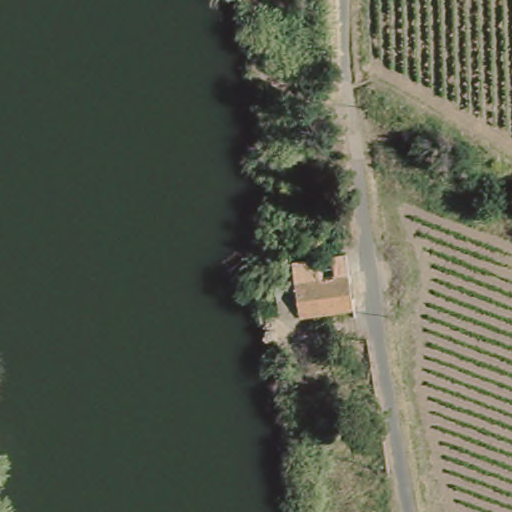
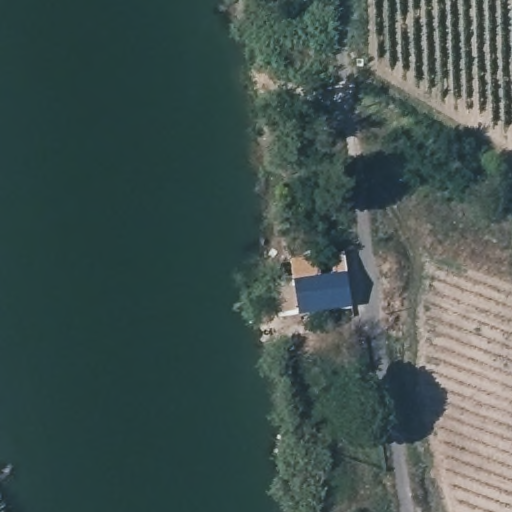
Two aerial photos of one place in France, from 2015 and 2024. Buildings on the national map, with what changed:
unchanged [(350,244),(353,263),(288,272),(284,247),(290,246),(291,252),(297,251),(296,246),(315,243),(323,242),(324,248),(350,244)]
unchanged [(353,263),(358,297),(284,307),(279,273),(288,272),(353,263)]

